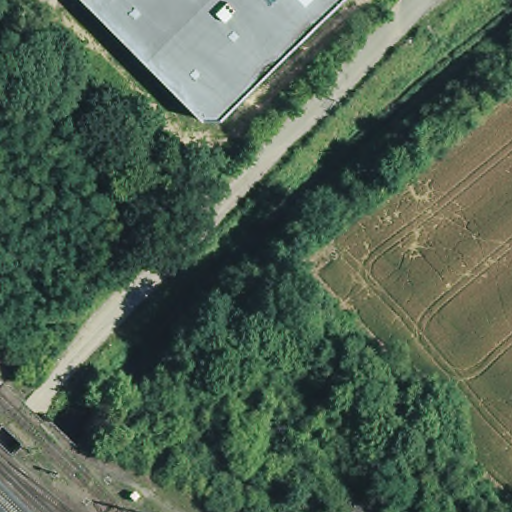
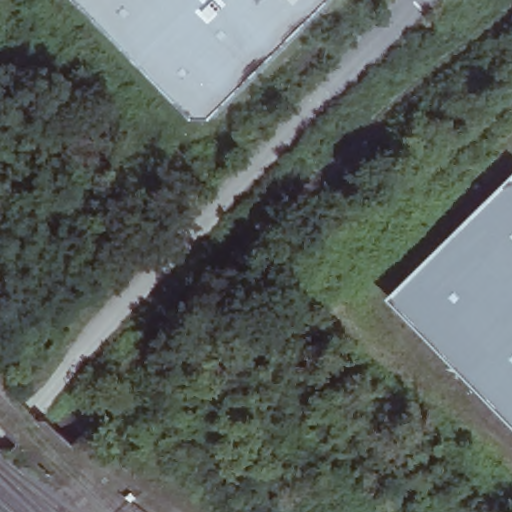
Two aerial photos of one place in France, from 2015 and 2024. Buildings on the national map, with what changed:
unchanged [(196,118),(79,0),(335,0),(216,117),(196,118)]
new [(512,426),(384,295),(512,166),(512,426)]

